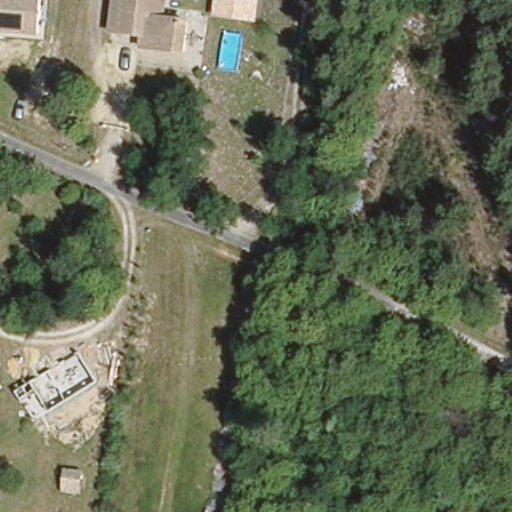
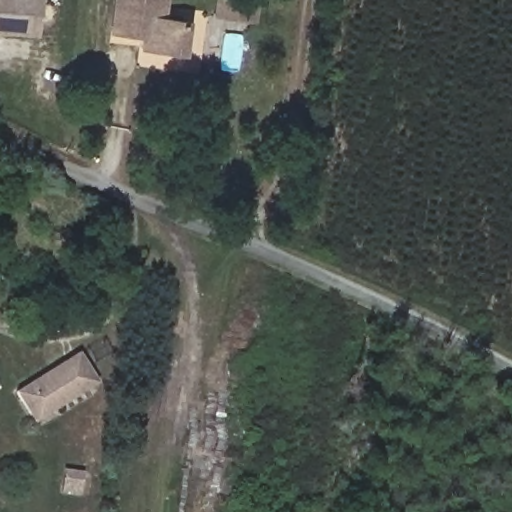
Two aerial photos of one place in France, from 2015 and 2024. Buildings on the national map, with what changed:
unchanged [(40,34),(0,29),(0,0),(44,0),(40,34)]
unchanged [(117,0),(166,0),(164,18),(189,21),(185,52),(141,46),(142,35),(113,31),(117,0)]
new [(34,422),(15,391),(79,351),(99,382),(34,422)]
unchanged [(59,492),(61,466),(84,471),(81,494),(59,492)]

